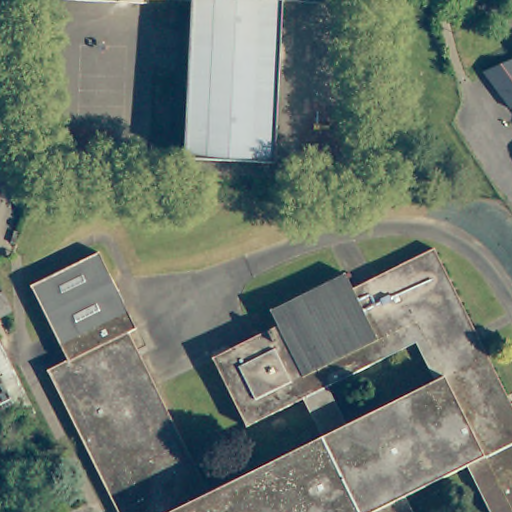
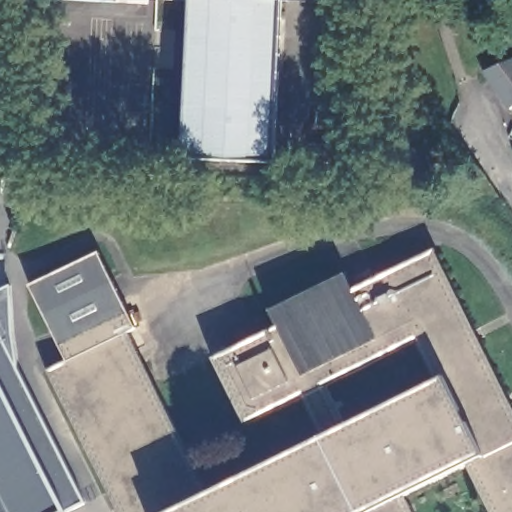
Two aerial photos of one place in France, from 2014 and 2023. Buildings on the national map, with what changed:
unchanged [(95,0),(117,0),(117,1),(95,0)]
unchanged [(280,2),(277,56),(275,120),(273,162),(228,160),(181,158),(183,109),(186,39),(188,0),(316,0),(316,4),(280,2)]
unchanged [(510,109),(484,74),(512,62),(512,107),(510,109)]
unchanged [(471,326),(512,407),(512,512),(115,512),(104,490),(69,422),(46,375),(66,365),(48,328),(30,291),(96,257),(136,335),(126,340),(208,499),(269,467),(322,441),(302,402),(246,430),(212,363),(277,328),(269,315),(343,275),(352,291),(420,256),(432,250),(471,326)]
new [(13,330),(19,368),(86,501),(66,511),(65,512),(0,512),(0,290),(10,285),(13,330)]
demolished [(0,315),(0,292),(6,289),(16,307),(0,315)]
demolished [(0,431),(0,376),(20,420),(0,431)]

